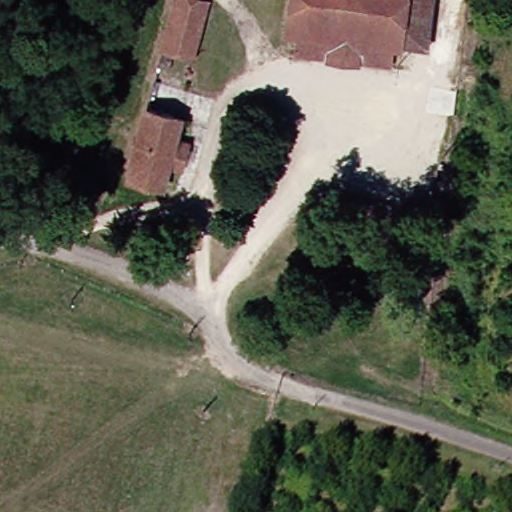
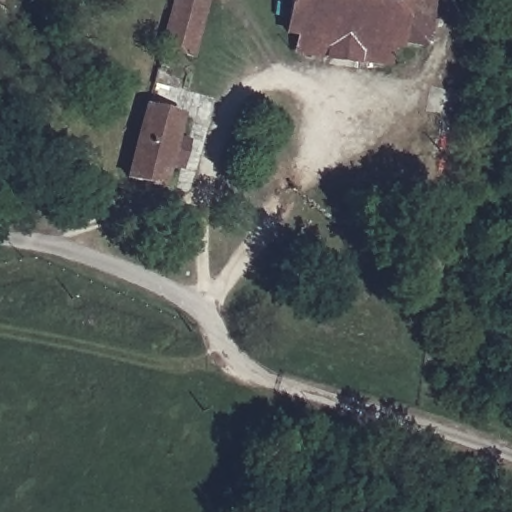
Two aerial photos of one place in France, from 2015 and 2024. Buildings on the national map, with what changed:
unchanged [(197,23),(195,33),(190,42),(176,50),(170,68),(157,65),(174,0),(196,0),(199,17),(197,23)]
unchanged [(285,50),(288,33),(280,32),(285,0),(401,0),(395,43),(395,49),(385,47),(381,64),(350,59),(285,50)]
unchanged [(427,0),(420,46),(395,43),(401,0),(427,0)]
unchanged [(175,118),(169,140),(182,145),(176,170),(162,167),(156,189),(125,180),(142,109),(175,118)]

